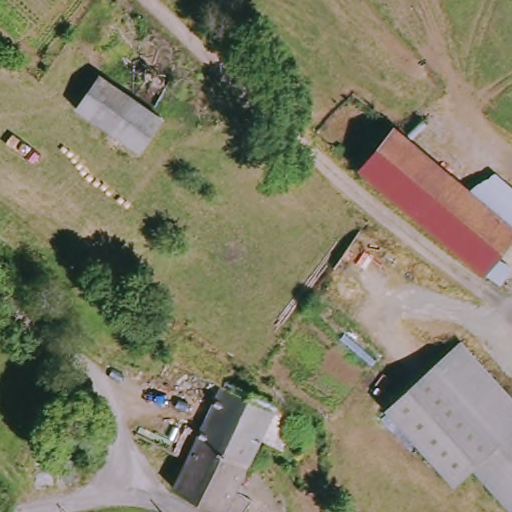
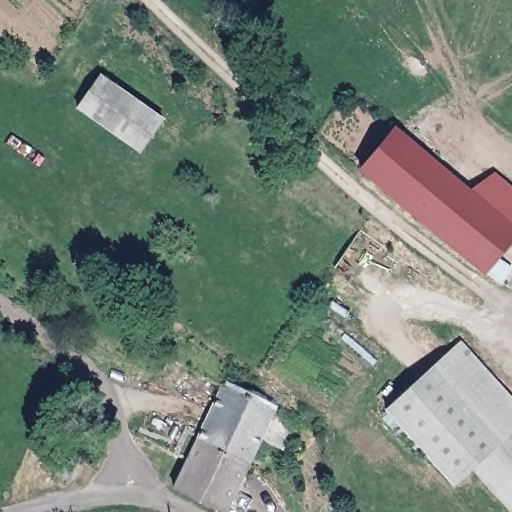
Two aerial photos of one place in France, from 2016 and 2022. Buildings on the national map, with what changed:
unchanged [(163,120),(139,155),(75,109),(100,75),(163,120)]
unchanged [(368,168),(401,129),(471,190),(512,226),(512,243),(511,244),(512,245),(512,290),(487,274),(368,168)]
unchanged [(500,175),(512,186),(512,226),(471,190),(500,175)]
unchanged [(478,467),(461,481),(397,408),(473,340),(512,384),(512,504),(478,467)]
unchanged [(177,494),(200,449),(233,382),(287,407),(304,427),(292,451),(269,441),(231,512),(224,512),(177,494)]

